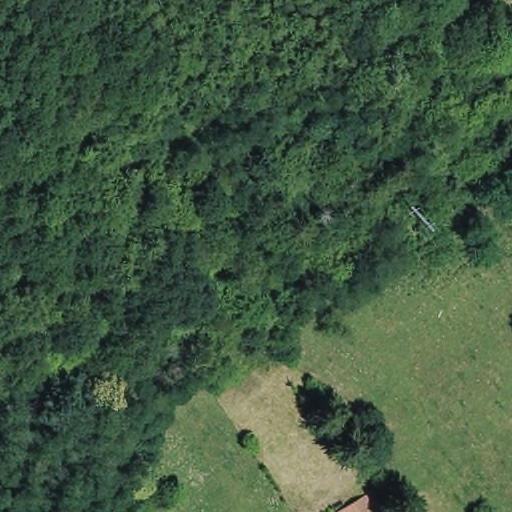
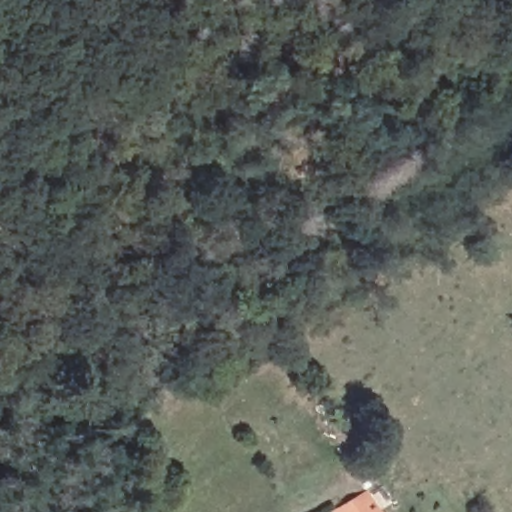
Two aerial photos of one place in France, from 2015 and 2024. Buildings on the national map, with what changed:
unchanged [(332,510),(362,493),(372,512),(333,512),(332,510)]

